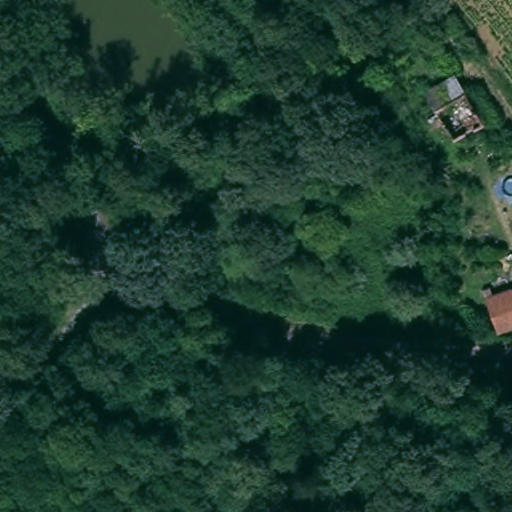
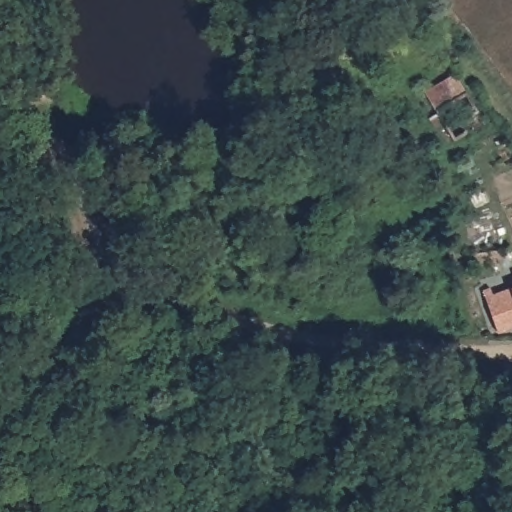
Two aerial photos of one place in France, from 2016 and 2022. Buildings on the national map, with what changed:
unchanged [(446,138),(431,107),(422,90),(454,75),(462,91),(478,120),(446,138)]
unchanged [(494,333),(482,299),(512,287),(512,325),(494,333)]

